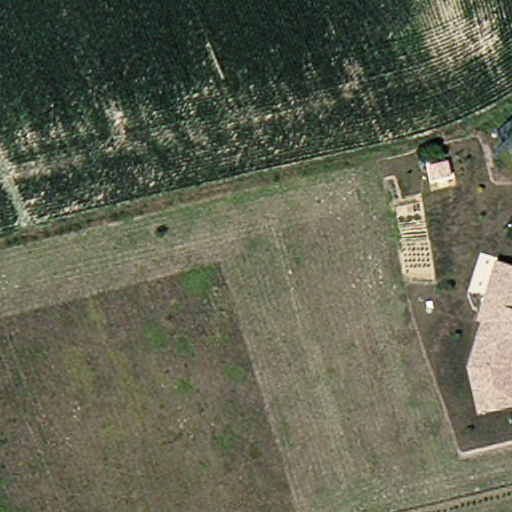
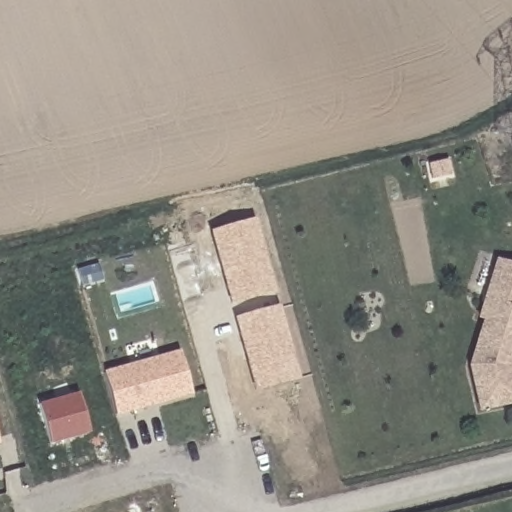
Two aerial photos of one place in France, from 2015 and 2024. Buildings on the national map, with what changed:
new [(209,231),(255,219),(275,294),(230,305),(209,231)]
unchanged [(471,367),(484,319),(479,318),(495,261),(512,266),(512,364),(511,367),(512,372),(512,403),(482,410),(471,367)]
new [(233,318),(279,306),(299,379),(254,392),(233,318)]
new [(103,372),(180,351),(192,394),(116,415),(103,372)]
new [(38,405),(78,393),(89,432),(49,444),(38,405)]

